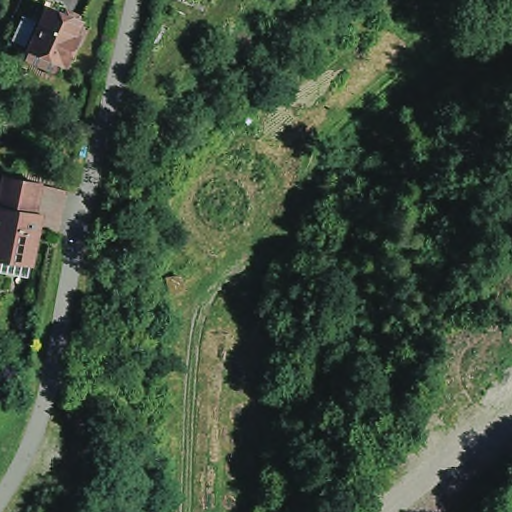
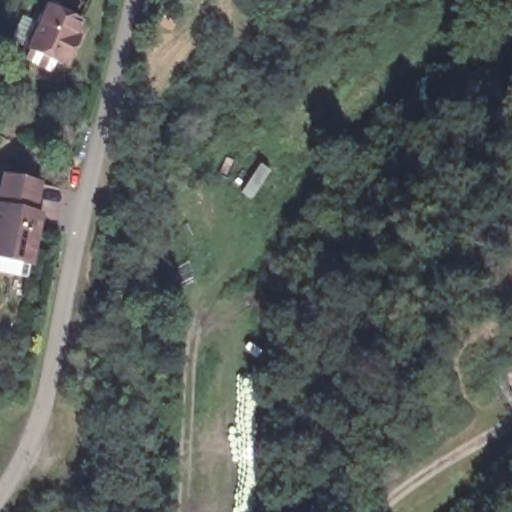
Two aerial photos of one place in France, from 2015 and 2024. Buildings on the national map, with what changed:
unchanged [(71,48),(63,66),(58,64),(57,67),(25,52),(45,10),(74,23),(67,38),(74,42),(71,48)]
unchanged [(0,271),(0,181),(30,186),(24,215),(32,217),(23,258),(20,275),(0,271)]

